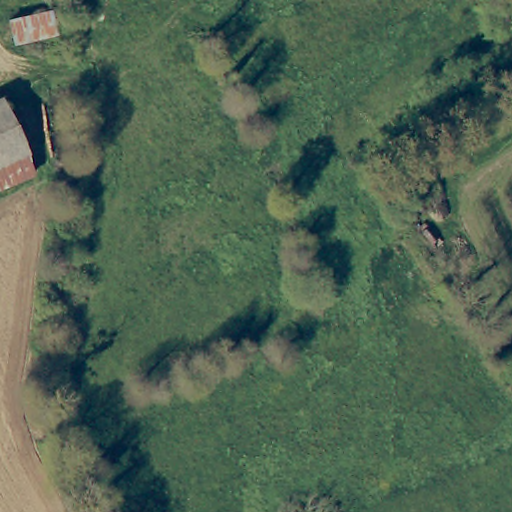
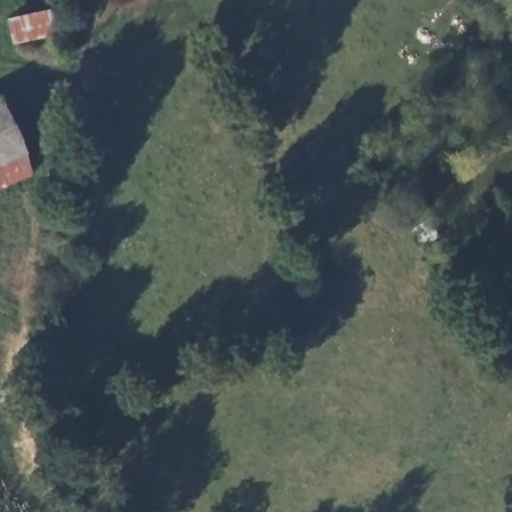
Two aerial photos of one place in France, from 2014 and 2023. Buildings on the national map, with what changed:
unchanged [(16,46),(9,19),(52,11),(59,37),(16,46)]
unchanged [(31,167),(33,174),(0,189),(0,98),(2,98),(31,167)]

